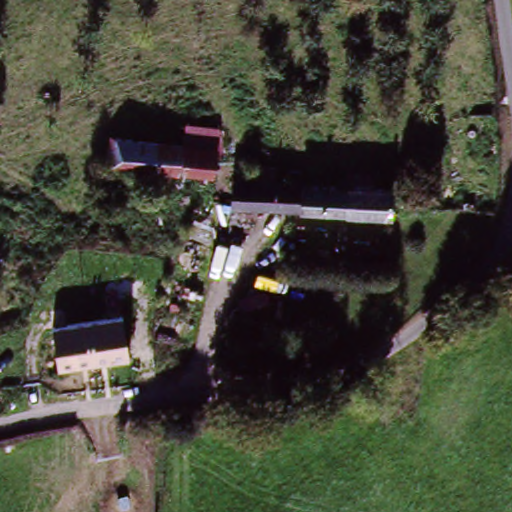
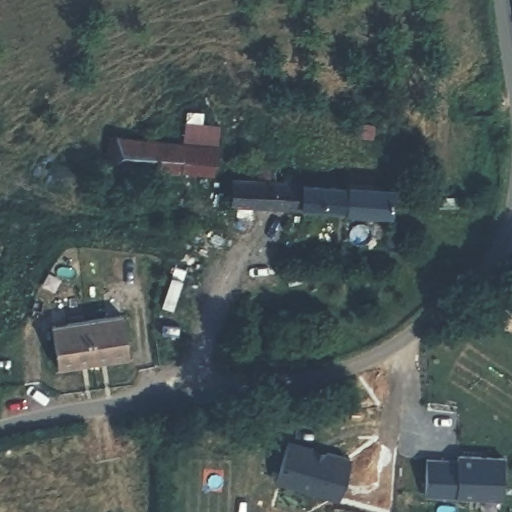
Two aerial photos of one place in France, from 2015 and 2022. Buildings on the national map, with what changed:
unchanged [(184,167),(118,162),(119,139),(185,144),(222,146),(221,170),(184,167)]
unchanged [(227,180),(385,185),(385,214),(227,209),(227,180)]
unchanged [(120,316),(127,356),(55,366),(50,326),(120,316)]
new [(352,458),(340,502),(275,482),(288,439),(352,458)]
new [(456,458),(457,454),(505,456),(502,500),(457,496),(457,498),(424,495),(427,457),(456,458)]

